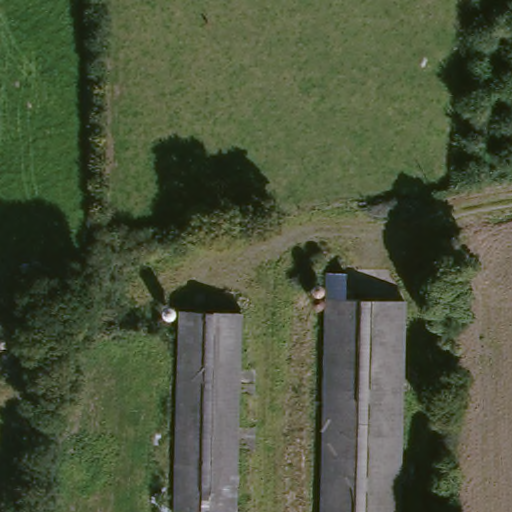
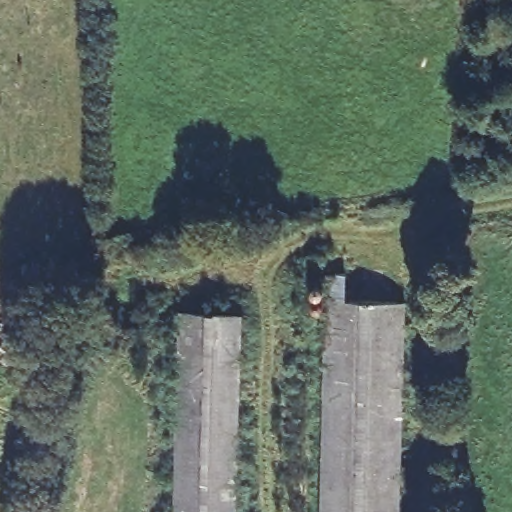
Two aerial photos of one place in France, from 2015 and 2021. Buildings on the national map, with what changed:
unchanged [(409,303),(402,512),(320,512),(327,302),(409,303)]
unchanged [(245,512),(170,512),(186,313),(245,315),(245,512)]

